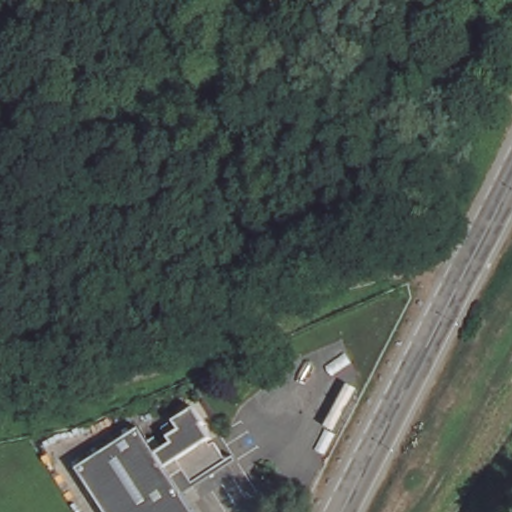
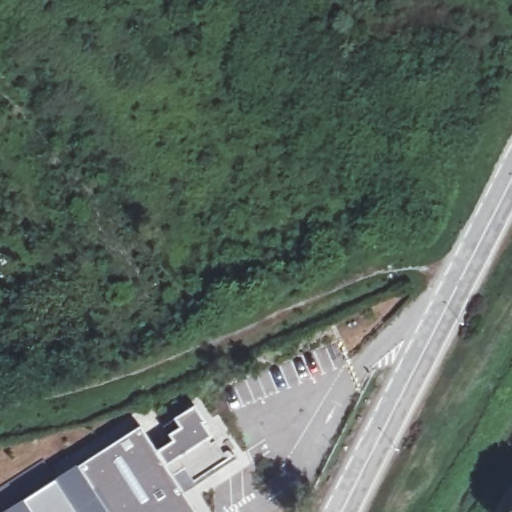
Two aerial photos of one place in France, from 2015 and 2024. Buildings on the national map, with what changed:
unchanged [(207,421),(207,425),(232,464),(198,488),(187,472),(176,478),(188,495),(163,512),(107,512),(80,470),(143,428),(160,453),(176,443),(172,437),(167,427),(178,420),(198,407),(207,421)]
new [(80,470),(107,512),(9,512),(78,467),(80,470)]
unchanged [(199,512),(163,512),(188,495),(199,512)]

